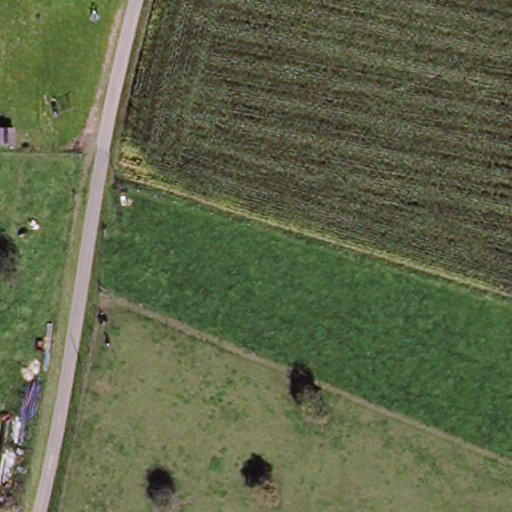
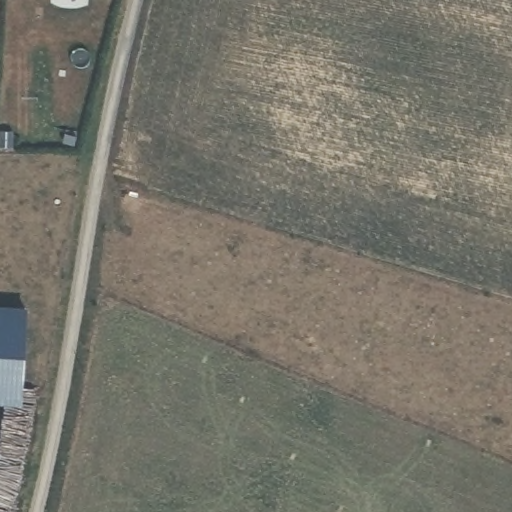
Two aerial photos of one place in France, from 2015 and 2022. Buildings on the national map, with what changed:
new [(27,305),(22,404),(0,403),(0,303),(27,305)]

